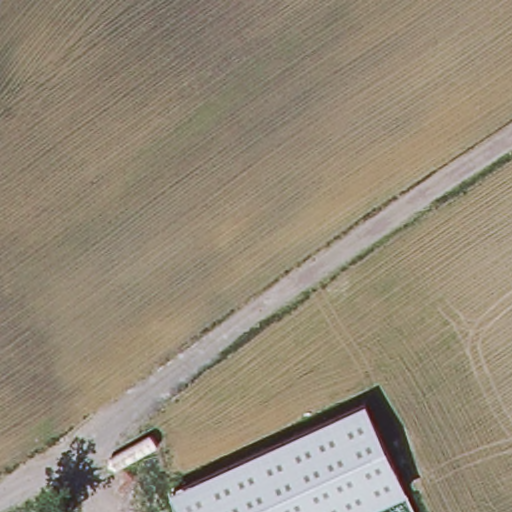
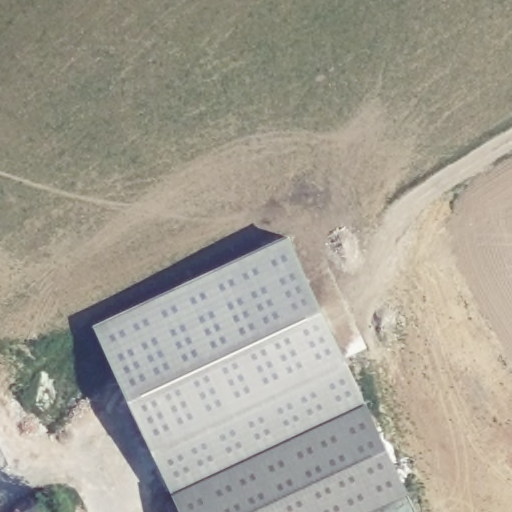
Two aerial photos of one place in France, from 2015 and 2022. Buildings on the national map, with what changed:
new [(365,399),(219,469),(170,492),(93,324),(287,234),(365,399)]
unchanged [(360,512),(180,512),(170,492),(367,398),(409,489),(360,512)]

